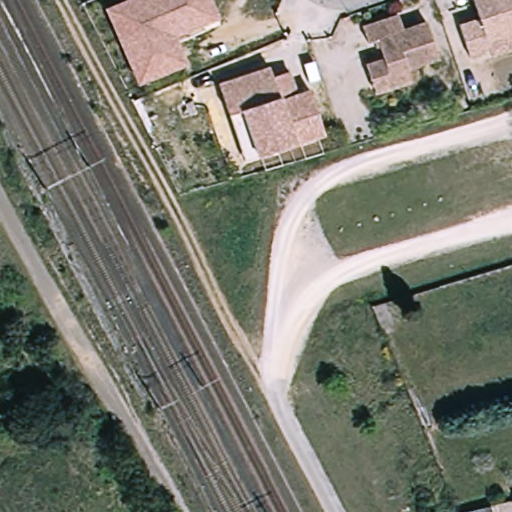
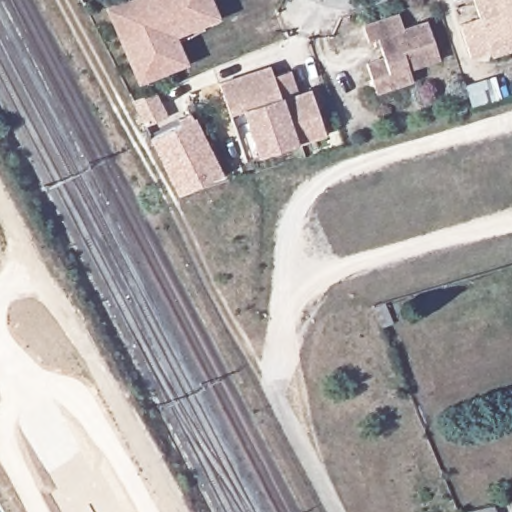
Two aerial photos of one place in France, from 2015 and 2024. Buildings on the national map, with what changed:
unchanged [(211,0),(219,18),(175,36),(187,64),(141,84),(110,10),(132,0),(211,0)]
unchanged [(492,51),(471,58),(460,26),(480,19),(474,0),(512,0),(512,34),(489,41),(492,51)]
unchanged [(377,88),(373,76),(367,60),(385,54),(379,35),(369,38),(364,22),(399,10),(404,26),(427,18),(440,54),(409,64),(413,76),(377,88)]
unchanged [(236,111),(226,80),(276,63),(279,73),(295,67),(303,91),(316,86),(331,130),(265,151),(251,156),(236,111)]
new [(221,172),(178,195),(151,139),(179,125),(176,118),(188,113),(193,118),(195,118),(221,172)]
unchanged [(385,301),(394,323),(382,328),(372,305),(385,301)]
unchanged [(488,512),(481,512),(487,511),(488,512)]

